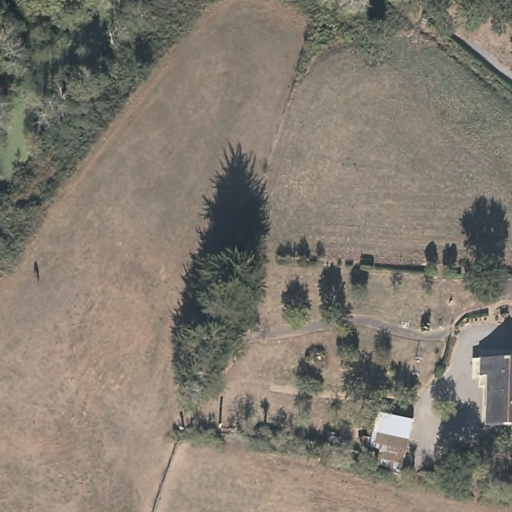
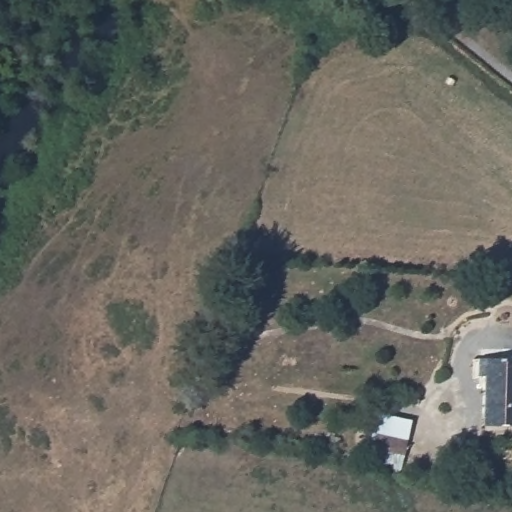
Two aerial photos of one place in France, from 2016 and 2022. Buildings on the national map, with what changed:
unchanged [(487,428),(489,379),(478,379),(479,361),(512,361),(512,429),(487,428)]
unchanged [(382,450),(372,449),(377,415),(419,421),(413,455),(410,472),(380,467),(382,450)]

